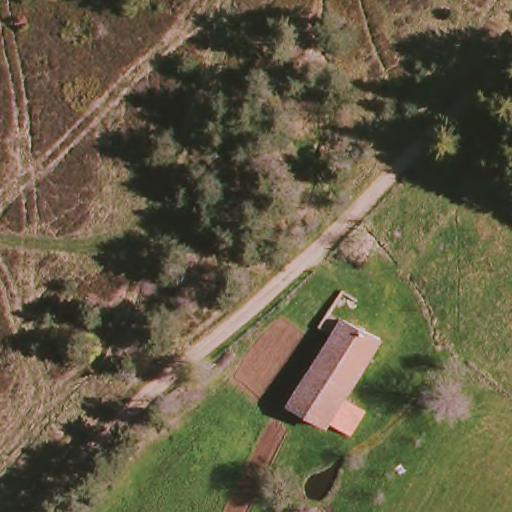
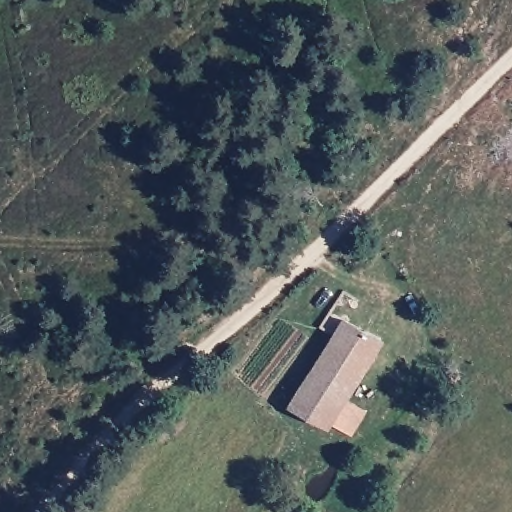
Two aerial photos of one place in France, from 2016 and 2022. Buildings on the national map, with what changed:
unchanged [(388,344),(362,384),(352,399),(371,414),(350,444),(330,431),(325,437),(289,411),(335,343),(326,338),(340,316),(388,344)]

